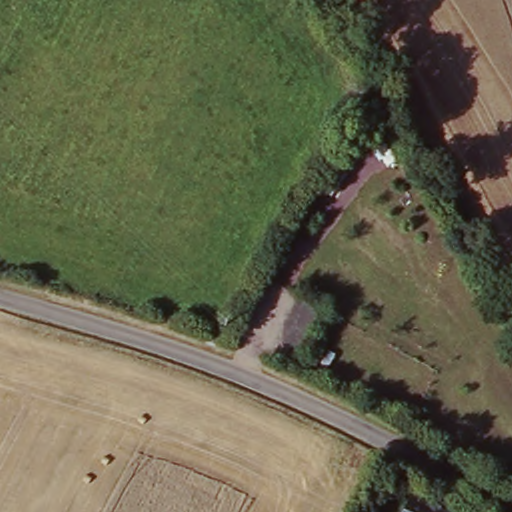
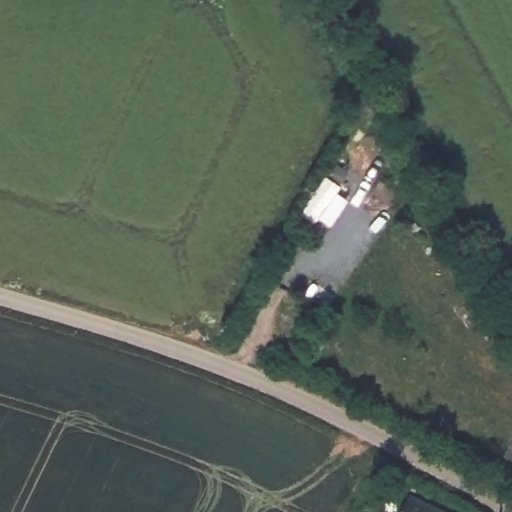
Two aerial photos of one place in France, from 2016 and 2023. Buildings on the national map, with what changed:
unchanged [(407,512),(414,500),(437,512),(407,512)]

